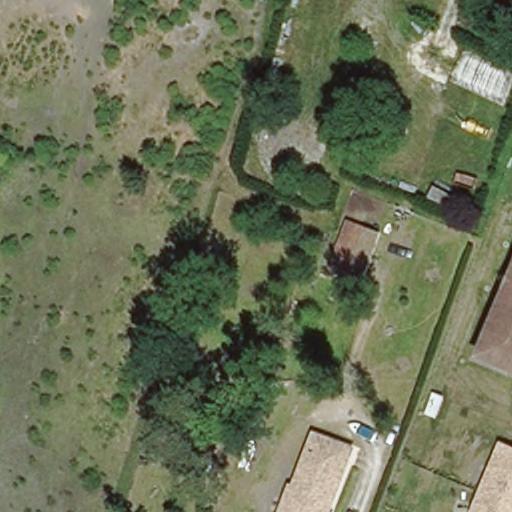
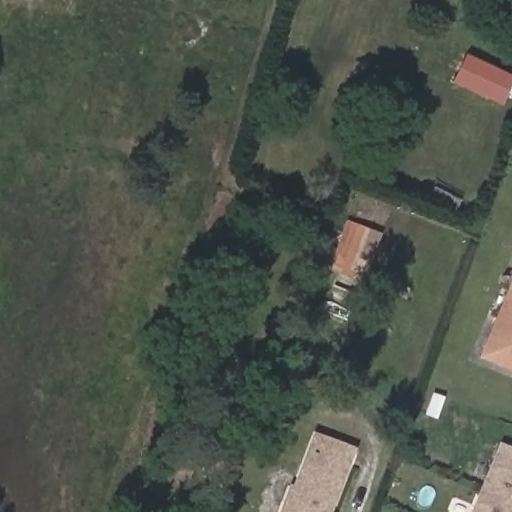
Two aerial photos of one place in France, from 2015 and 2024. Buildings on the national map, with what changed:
new [(469,55),(512,76),(512,91),(505,105),(456,81),(469,55)]
unchanged [(379,233),(362,277),(341,270),(346,256),(338,253),(349,222),(379,233)]
unchanged [(481,349),(512,277),(512,361),(481,349)]
unchanged [(289,501),(294,502),(318,436),(352,449),(329,512),(285,512),(289,501)]
unchanged [(504,442),(512,445),(512,512),(472,512),(504,442)]

